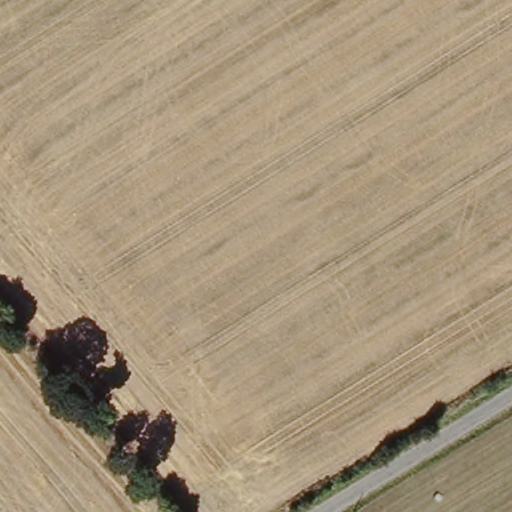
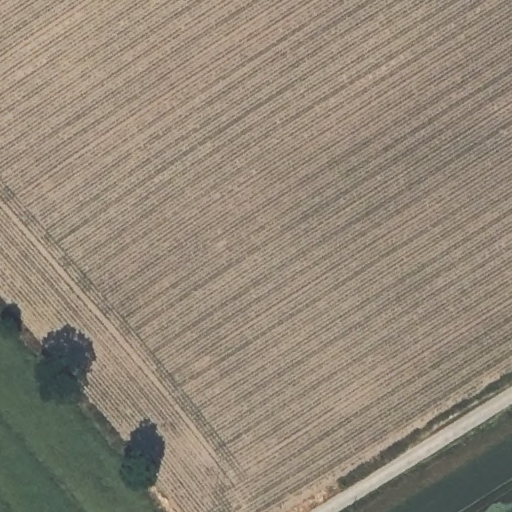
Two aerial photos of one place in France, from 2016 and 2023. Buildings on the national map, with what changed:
[]

